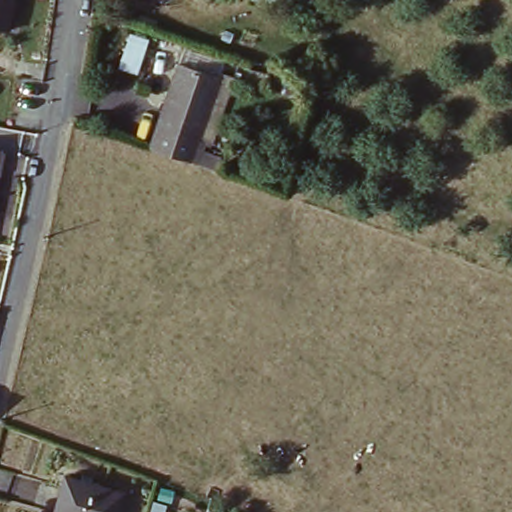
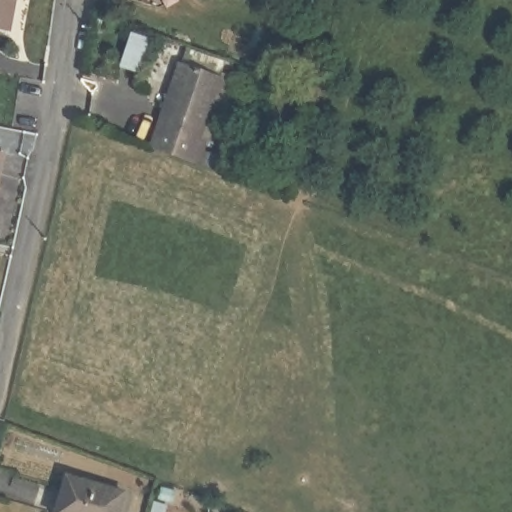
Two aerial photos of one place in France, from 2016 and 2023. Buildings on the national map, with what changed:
unchanged [(12,35),(0,33),(0,0),(17,0),(12,35)]
unchanged [(174,63),(218,74),(204,138),(213,140),(206,164),(153,148),(174,63)]
unchanged [(10,155),(5,177),(0,177),(0,153),(10,155)]
unchanged [(123,491),(120,512),(57,512),(66,477),(123,491)]

